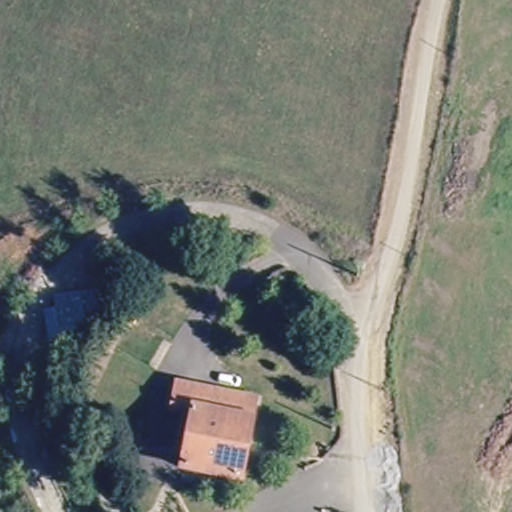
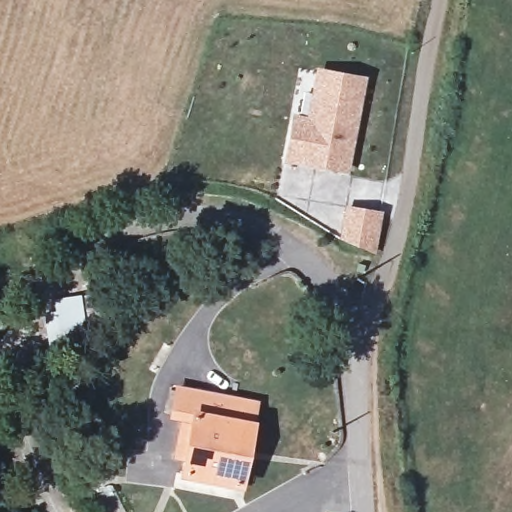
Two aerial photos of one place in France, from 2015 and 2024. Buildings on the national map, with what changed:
new [(283,163),(291,114),(306,116),(315,68),(366,78),(348,174),(283,163)]
new [(339,240),(344,204),(381,212),(376,255),(339,240)]
new [(90,321),(84,322),(85,330),(58,334),(59,346),(49,347),(44,314),(55,313),(54,299),(86,295),(90,321)]
unchanged [(237,483),(185,476),(196,420),(167,414),(173,382),(252,397),(237,483)]

